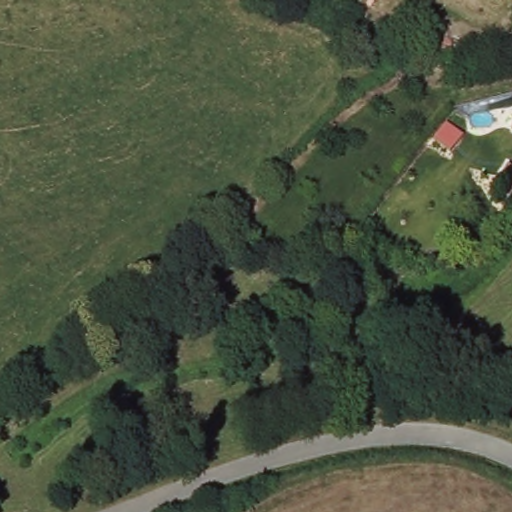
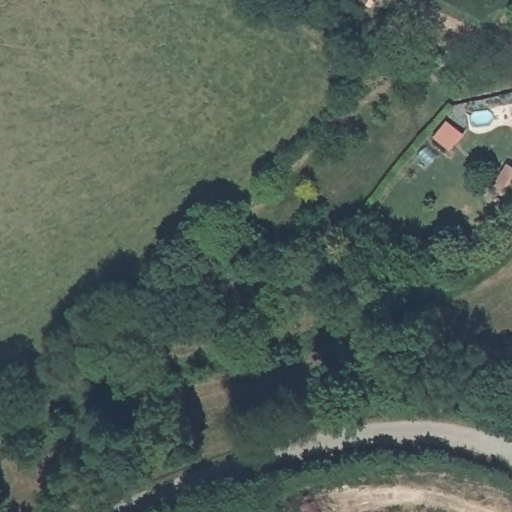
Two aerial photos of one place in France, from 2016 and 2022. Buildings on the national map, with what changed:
unchanged [(512,180),(507,187),(493,179),(506,157),(512,160),(512,180)]
unchanged [(503,207),(508,197),(512,189),(512,211),(508,209),(503,207)]

